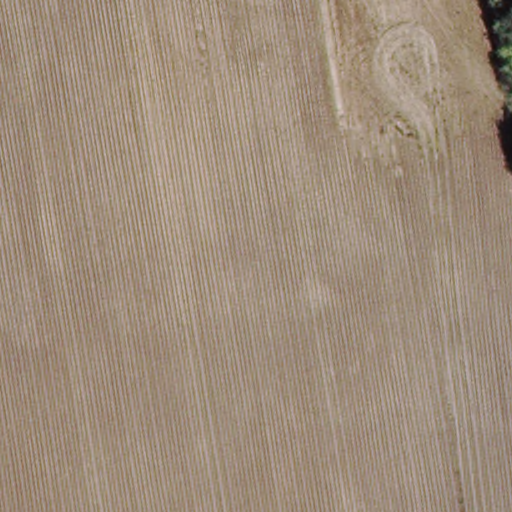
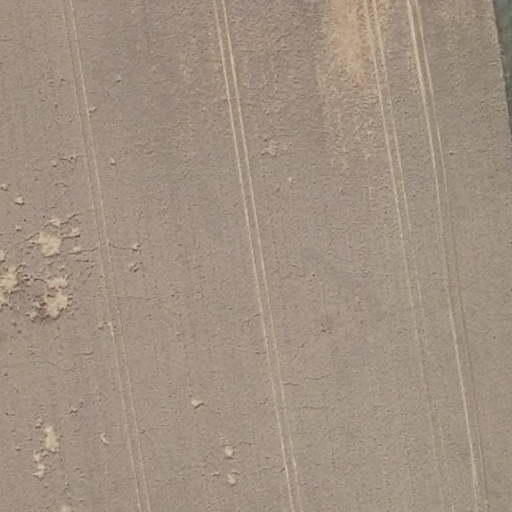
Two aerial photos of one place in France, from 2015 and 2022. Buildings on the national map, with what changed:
[]

